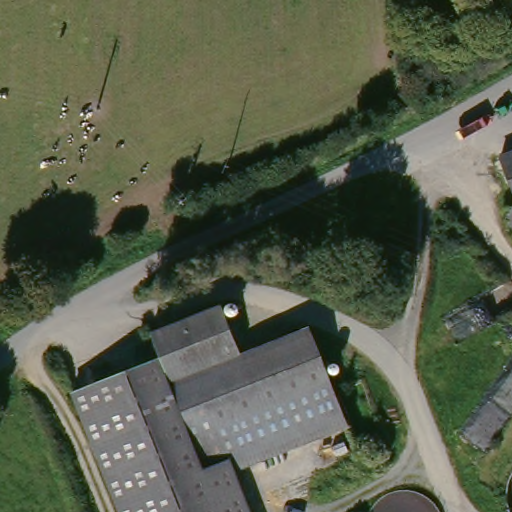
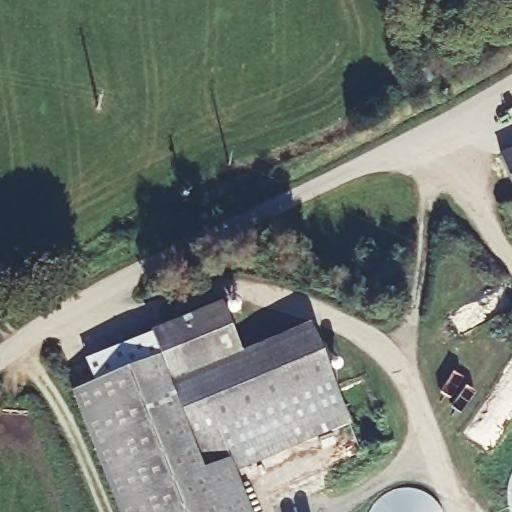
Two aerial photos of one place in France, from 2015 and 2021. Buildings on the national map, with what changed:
unchanged [(501,156),(512,152),(512,184),(501,156)]
unchanged [(512,204),(512,232),(503,209),(512,204)]
unchanged [(311,327),(344,413),(231,456),(252,512),(124,512),(77,388),(163,355),(153,328),(221,302),(241,354),(311,327)]

